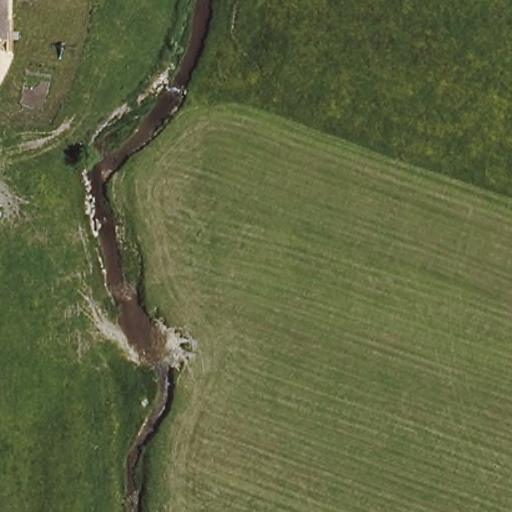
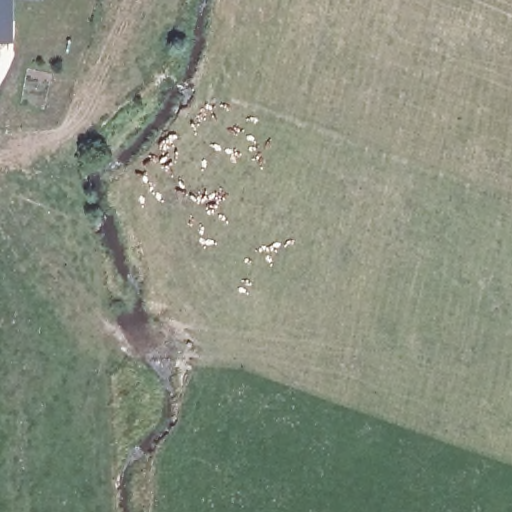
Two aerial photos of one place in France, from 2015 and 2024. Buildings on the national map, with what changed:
unchanged [(0,33),(0,0),(5,0),(5,33),(0,33)]

